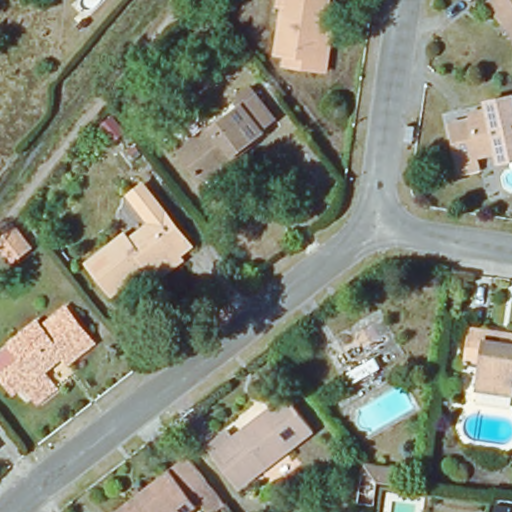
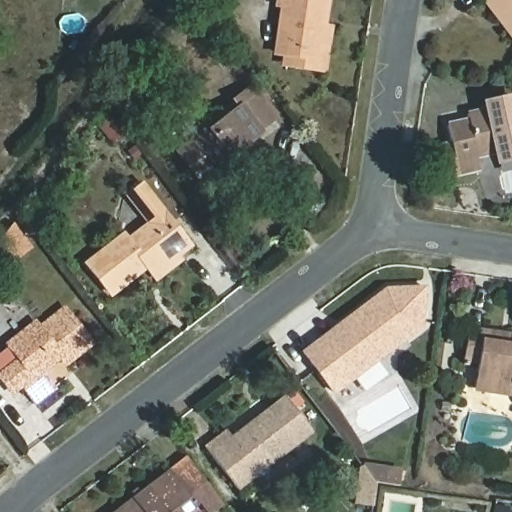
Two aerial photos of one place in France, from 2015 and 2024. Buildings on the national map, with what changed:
unchanged [(326,73),(291,69),(291,58),(276,56),(282,9),(278,8),(279,0),(327,0),(325,30),(331,30),(326,73)]
unchanged [(506,27),(488,4),(492,0),(512,0),(512,35),(506,27)]
unchanged [(239,106),(236,101),(250,91),(272,122),(260,131),(264,137),(202,182),(178,152),(239,106)]
unchanged [(456,171),(453,158),(448,123),(469,119),(469,111),(512,103),(512,149),(478,154),(480,168),(456,171)]
unchanged [(155,285),(149,278),(140,267),(131,273),(135,279),(109,297),(85,265),(123,235),(128,242),(152,224),(131,196),(144,187),(173,227),(192,251),(180,261),(182,264),(155,285)]
unchanged [(0,230),(2,227),(7,222),(24,244),(18,248),(4,259),(0,253),(0,230)]
new [(337,329),(370,303),(368,302),(382,291),(420,291),(416,325),(397,340),(398,343),(329,396),(306,365),(299,357),(337,329)]
unchanged [(38,319),(42,325),(67,307),(90,341),(67,357),(59,346),(53,350),(57,357),(44,365),(57,384),(34,401),(20,382),(11,389),(0,371),(24,355),(12,337),(38,319)]
unchanged [(480,385),(482,360),(466,359),(471,325),(485,327),(512,331),(512,389),(480,385)]
unchanged [(231,435),(236,440),(290,399),(316,436),(240,491),(210,450),(231,435)]
unchanged [(212,493),(223,507),(216,512),(208,512),(199,502),(187,512),(123,512),(188,461),(212,493)]
unchanged [(417,492),(378,486),(374,507),(358,505),(364,464),(423,472),(417,492)]

